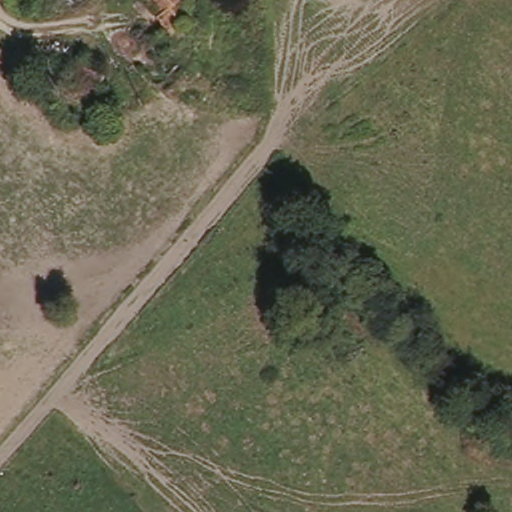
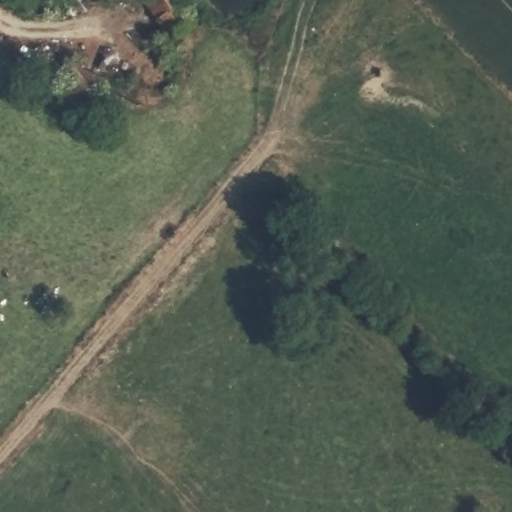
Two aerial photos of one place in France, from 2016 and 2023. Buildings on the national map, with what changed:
unchanged [(151,30),(158,26),(148,0),(186,0),(187,3),(181,6),(190,28),(185,31),(188,45),(164,50),(151,30)]
unchanged [(82,131),(49,115),(65,82),(98,99),(82,131)]

